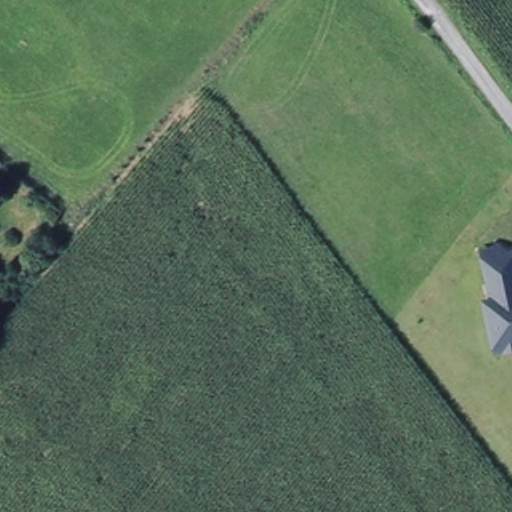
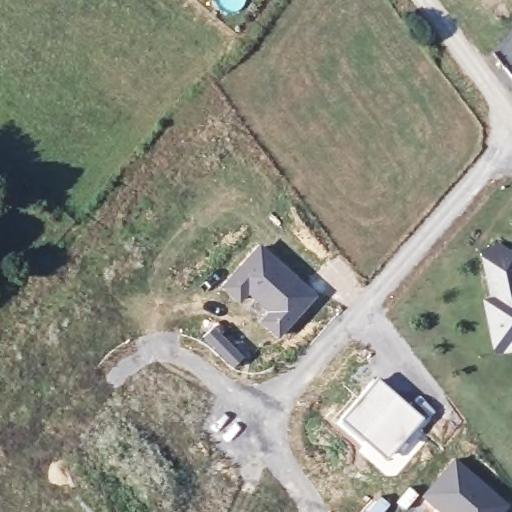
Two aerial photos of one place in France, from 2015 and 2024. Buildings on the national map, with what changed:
new [(260,242),(320,294),(278,340),(257,321),(266,311),(248,293),(237,303),(219,286),(260,242)]
unchanged [(497,347),(486,296),(495,295),(486,256),(483,249),(507,244),(509,252),(512,251),(512,345),(497,347)]
new [(216,324),(245,356),(232,367),(202,337),(216,324)]
new [(376,375),(410,405),(419,395),(435,411),(428,419),(426,417),(417,428),(426,436),(392,476),(385,475),(358,450),(362,445),(335,421),(376,375)]
new [(510,503),(502,512),(440,512),(420,495),(453,455),(510,503)]

